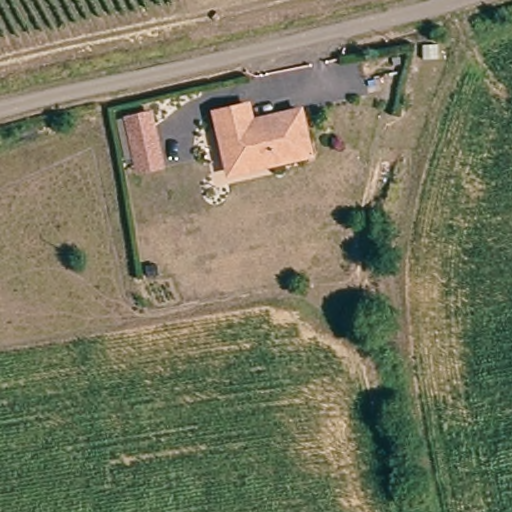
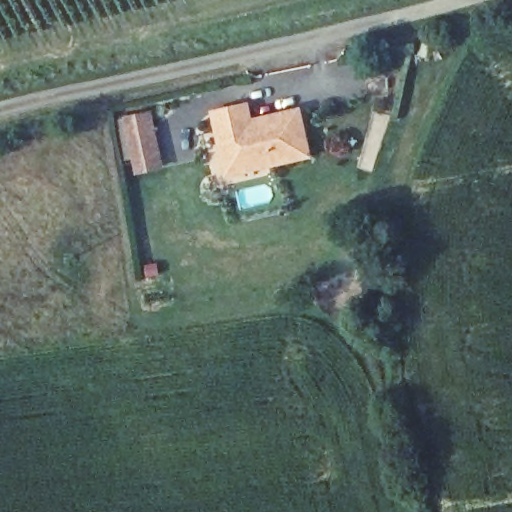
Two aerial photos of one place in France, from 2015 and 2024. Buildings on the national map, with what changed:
unchanged [(251,105),(257,125),(306,118),(316,162),(279,171),(276,160),(232,170),(225,133),(218,132),(215,112),(251,105)]
unchanged [(138,170),(136,161),(127,117),(152,112),(154,125),(161,156),(162,165),(138,170)]

